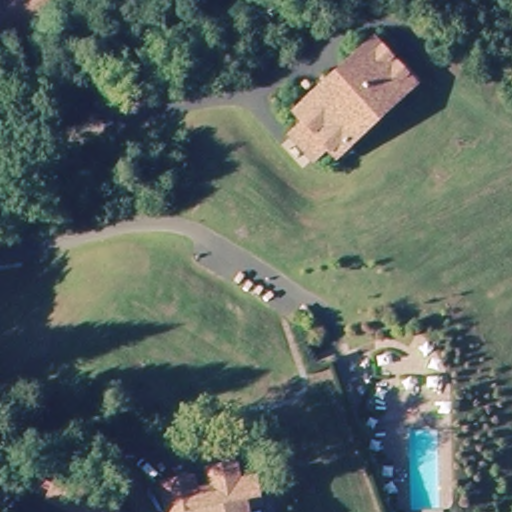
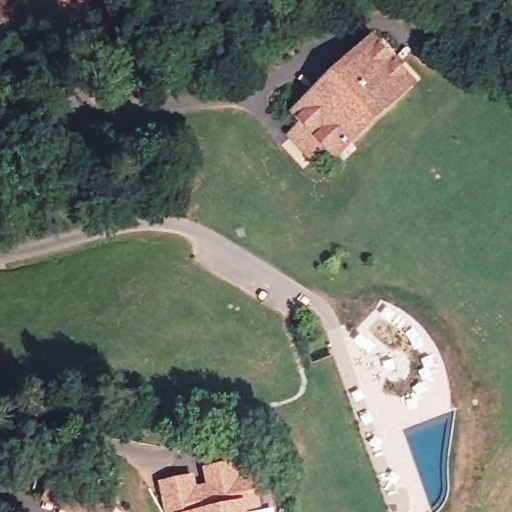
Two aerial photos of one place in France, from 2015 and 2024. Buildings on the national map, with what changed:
unchanged [(0,58),(0,0),(116,0),(0,58)]
unchanged [(293,131),(306,120),(296,110),(347,62),(352,68),(368,54),(362,47),(373,35),(408,72),(398,81),(405,88),(337,151),(332,143),(316,155),(293,131)]
unchanged [(364,512),(309,371),(332,362),(388,512),(364,512)]
unchanged [(173,504),(171,492),(161,494),(157,477),(190,471),(192,481),(212,477),(208,455),(232,451),(237,472),(252,471),(257,497),(242,501),(244,512),(169,512),(168,505),(173,504)]
unchanged [(107,512),(70,512),(46,500),(57,476),(112,501),(107,512)]

